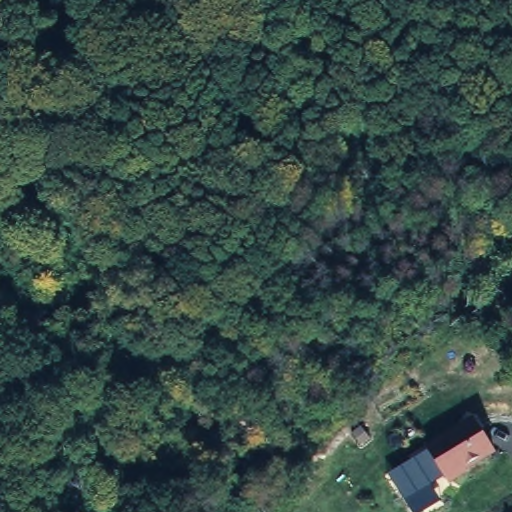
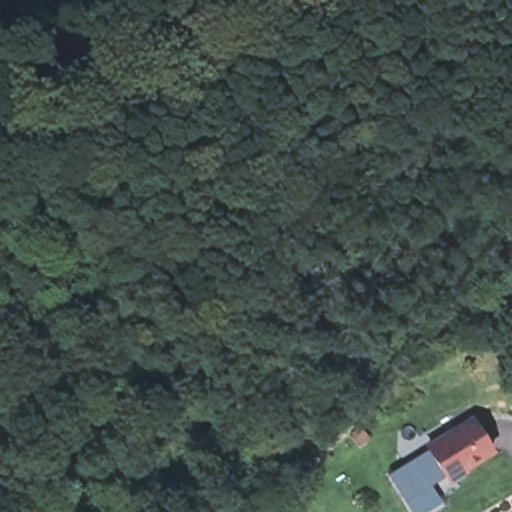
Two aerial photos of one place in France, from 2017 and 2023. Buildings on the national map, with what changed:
unchanged [(494,450),(465,469),(463,476),(454,481),(448,479),(429,449),(452,436),(451,434),(462,427),(463,429),(476,421),(494,450)]
unchanged [(434,487),(441,499),(423,512),(410,512),(389,474),(429,449),(448,479),(434,487)]

